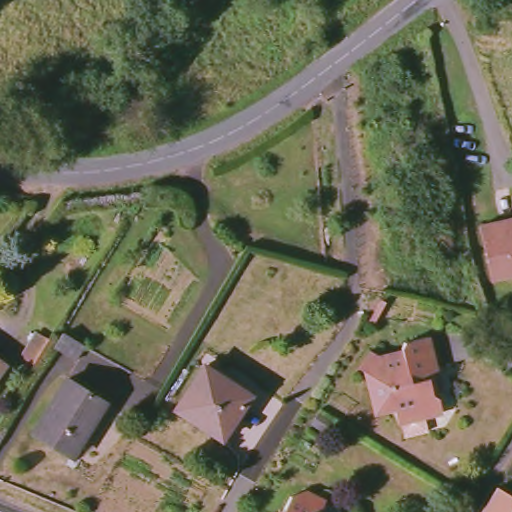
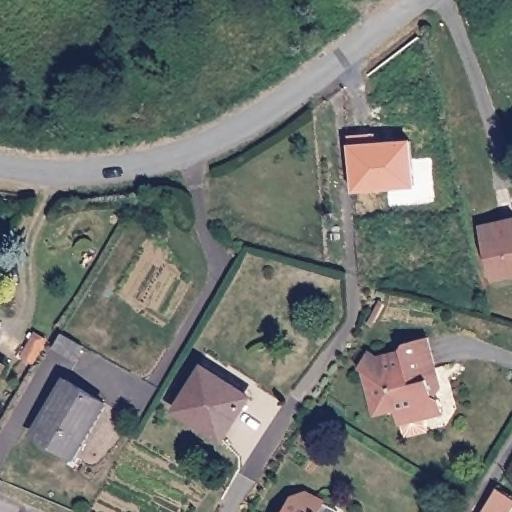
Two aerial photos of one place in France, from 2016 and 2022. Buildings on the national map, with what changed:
new [(375,135),(375,144),(410,141),(413,185),(352,190),(348,137),(375,135)]
unchanged [(494,281),(477,229),(512,216),(512,276),(494,281)]
unchanged [(28,347),(41,327),(50,332),(36,353),(28,347)]
unchanged [(435,397),(439,411),(417,418),(395,425),(390,411),(372,415),(359,372),(353,372),(366,354),(372,361),(397,353),(397,343),(420,337),(430,370),(435,388),(428,399),(435,397)]
unchanged [(0,373),(0,363),(5,367),(0,373)]
unchanged [(171,410),(198,366),(247,396),(218,440),(171,410)]
unchanged [(32,430),(65,379),(102,401),(70,453),(32,430)]
unchanged [(512,484),(512,509),(510,512),(481,512),(502,477),(512,484)]
unchanged [(308,492),(322,501),(315,512),(284,512),(293,496),(308,492)]

